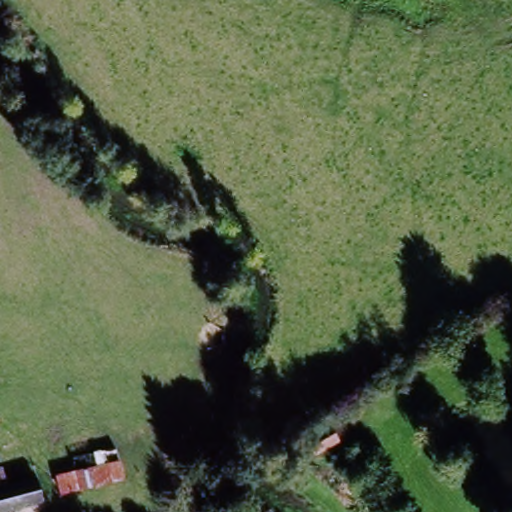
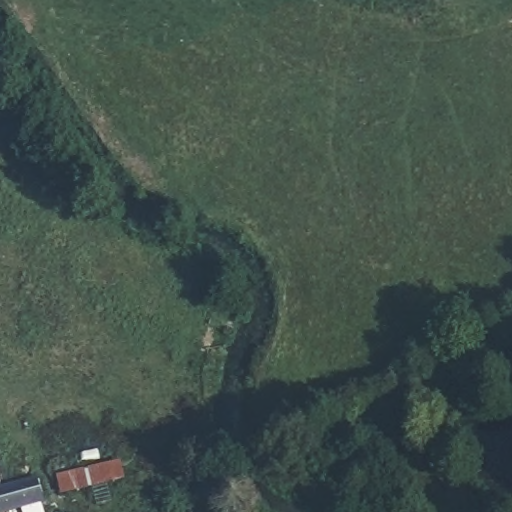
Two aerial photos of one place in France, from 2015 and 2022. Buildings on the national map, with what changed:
unchanged [(313,439),(333,429),(340,441),(320,451),(313,439)]
unchanged [(60,493),(56,477),(120,461),(123,477),(60,493)]
unchanged [(7,487),(35,480),(41,502),(28,506),(4,512),(0,512),(0,463),(0,462),(7,487)]

